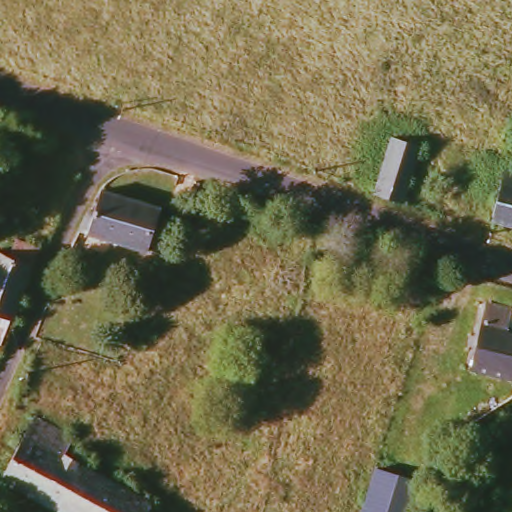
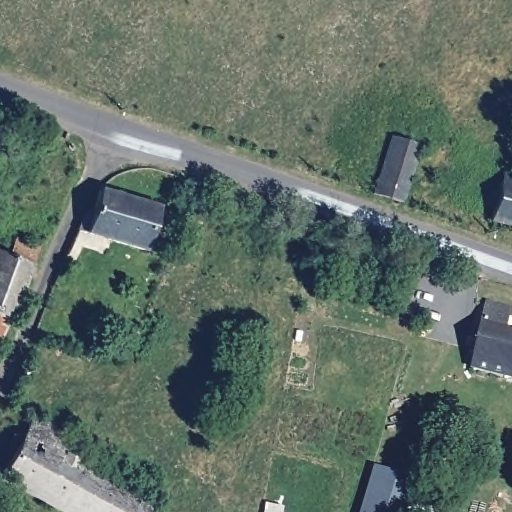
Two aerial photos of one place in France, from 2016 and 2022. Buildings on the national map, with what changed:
unchanged [(381,196),(397,142),(425,150),(409,205),(381,196)]
unchanged [(506,173),(512,175),(512,229),(493,224),(506,173)]
unchanged [(163,208),(149,250),(86,229),(95,211),(104,207),(112,191),(163,208)]
unchanged [(25,231),(46,242),(38,268),(14,327),(1,359),(0,359),(0,265),(5,252),(25,231)]
unchanged [(490,303),(512,309),(512,316),(509,330),(512,331),(512,379),(474,370),(490,303)]
unchanged [(78,439),(68,457),(153,500),(146,512),(67,512),(6,482),(36,418),(78,439)]
unchanged [(407,512),(364,512),(379,467),(418,478),(407,512)]

